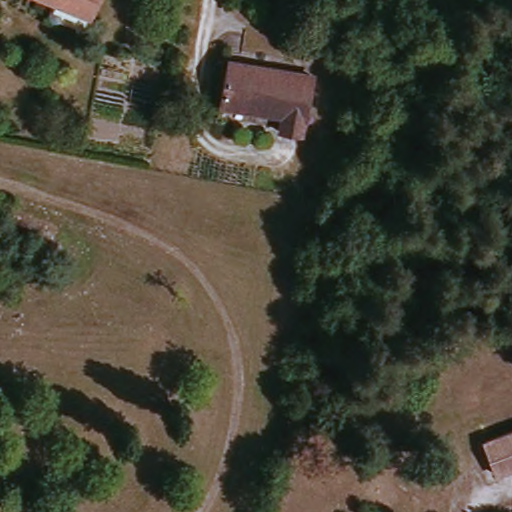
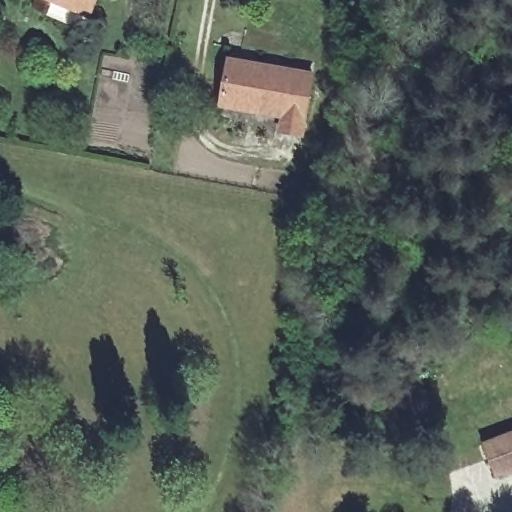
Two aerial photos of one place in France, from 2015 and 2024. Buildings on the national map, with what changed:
unchanged [(95,19),(86,13),(79,26),(48,12),(53,0),(103,0),(95,19)]
unchanged [(314,81),(300,143),(276,137),(279,120),(220,106),(229,62),(314,81)]
unchanged [(498,479),(483,443),(506,435),(512,433),(512,474),(498,479)]

